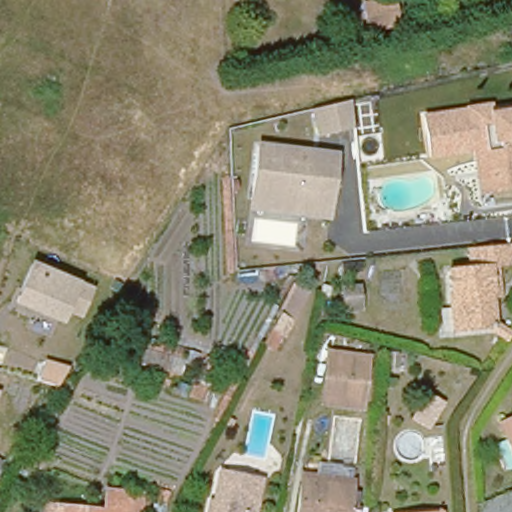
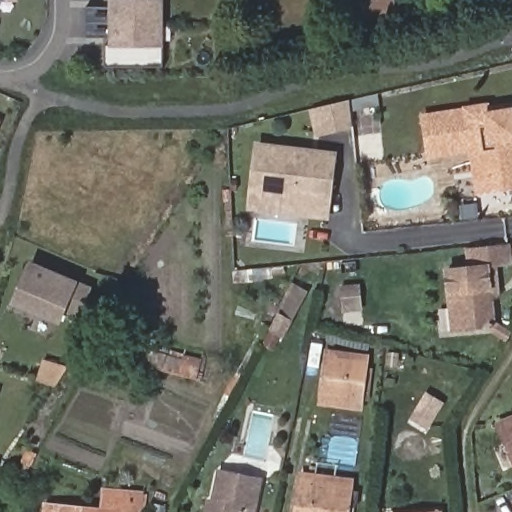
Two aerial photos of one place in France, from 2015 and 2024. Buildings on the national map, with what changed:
new [(0,1),(0,0),(20,0),(0,1)]
new [(110,7),(110,0),(163,0),(163,46),(163,65),(108,67),(107,45),(109,45),(109,37),(86,37),(86,7),(110,7)]
unchanged [(366,30),(362,3),(387,0),(390,0),(394,25),(366,30)]
unchanged [(355,130),(314,138),(310,109),(351,99),(355,130)]
unchanged [(489,104),(490,110),(512,108),(512,183),(477,188),(471,150),(432,155),(425,113),(489,104)]
unchanged [(329,221),(246,210),(257,141),(338,153),(329,221)]
unchanged [(501,333),(488,325),(447,330),(439,267),(461,264),(459,242),(503,237),(506,260),(489,262),(490,278),(492,293),(494,317),(507,325),(501,333)]
unchanged [(80,319),(67,314),(62,325),(12,304),(29,259),(93,285),(80,319)]
unchanged [(343,308),(341,287),(357,284),(359,307),(343,308)]
unchanged [(328,353),(364,357),(358,406),(321,401),(328,353)]
unchanged [(512,409),(512,458),(509,459),(492,416),(512,409)]
unchanged [(0,473),(0,458),(4,459),(0,473)]
unchanged [(252,512),(208,512),(218,468),(261,478),(252,512)]
unchanged [(347,482),(344,512),(293,512),(298,476),(347,482)]
unchanged [(131,501),(130,507),(138,508),(138,512),(106,512),(108,500),(131,501)]
unchanged [(79,512),(44,512),(44,510),(79,512)]

